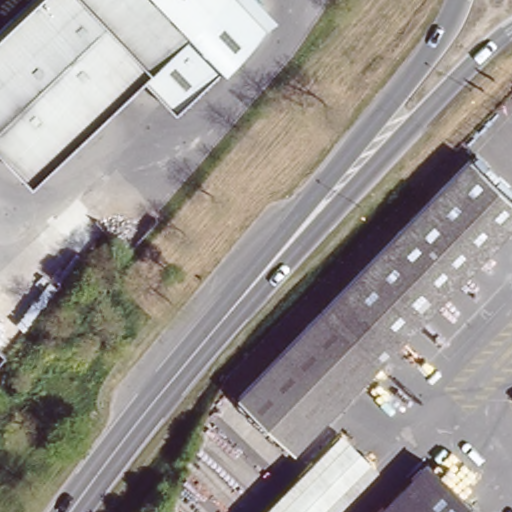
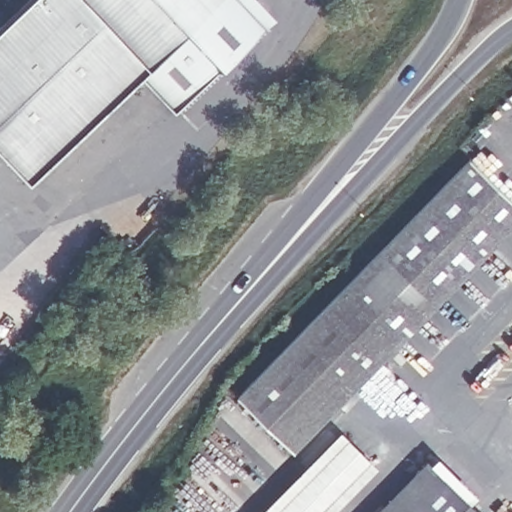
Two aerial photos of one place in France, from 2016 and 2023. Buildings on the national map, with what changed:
unchanged [(30,174),(0,142),(0,24),(25,0),(210,0),(30,174)]
unchanged [(210,0),(243,0),(265,24),(175,109),(139,69),(210,0)]
unchanged [(468,159),(512,203),(512,223),(288,447),(236,395),(468,159)]
unchanged [(380,462),(330,512),(254,512),(341,423),(380,462)]
unchanged [(445,474),(404,512),(370,512),(429,457),(445,474)]
unchanged [(479,510),(476,512),(404,512),(445,474),(479,510)]
unchanged [(480,512),(476,512),(479,510),(480,512)]

